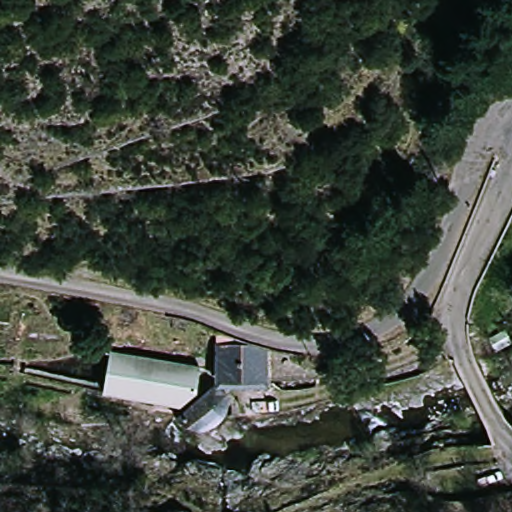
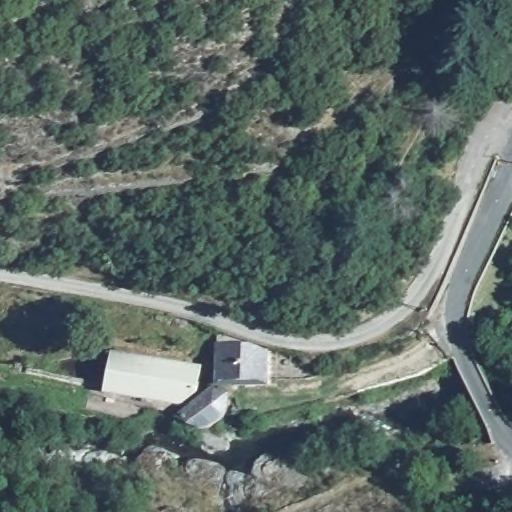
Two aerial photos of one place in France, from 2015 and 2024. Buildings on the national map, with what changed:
unchanged [(247,341),(275,346),(275,385),(234,385),(228,417),(211,430),(185,422),(185,405),(104,390),(113,350),(206,363),(203,390),(216,380),(217,341),(247,341)]

